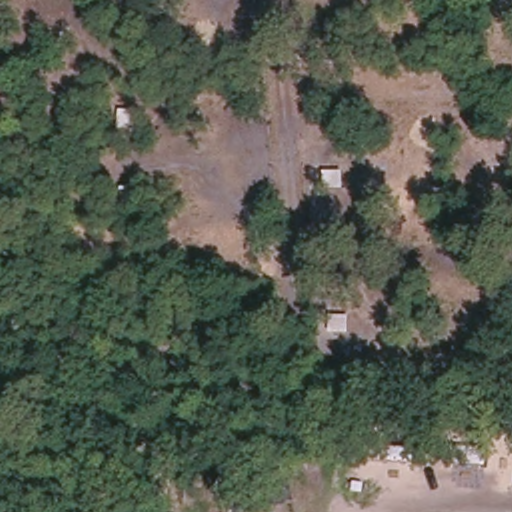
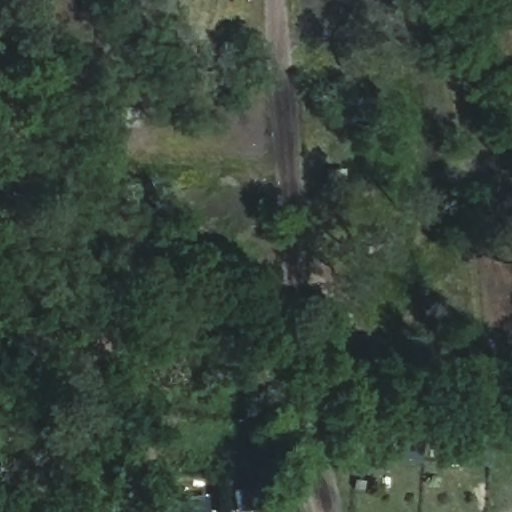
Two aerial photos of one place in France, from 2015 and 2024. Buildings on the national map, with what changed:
[]

